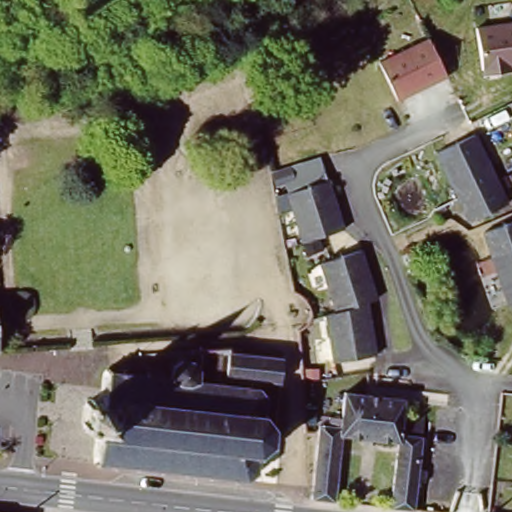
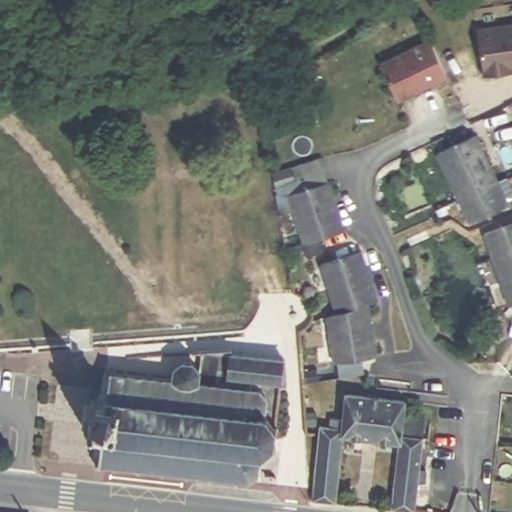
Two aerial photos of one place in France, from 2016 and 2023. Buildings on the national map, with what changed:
unchanged [(475,26),(512,21),(512,71),(481,75),(475,26)]
unchanged [(446,76),(397,99),(378,62),(428,38),(446,76)]
unchanged [(478,139),(512,207),(475,226),(440,158),(478,139)]
unchanged [(346,226),(305,239),(290,190),(330,178),(346,226)]
unchanged [(485,230),(512,221),(512,303),(510,303),(485,230)]
unchanged [(376,297),(366,301),(376,354),(335,362),(325,313),(335,311),(318,261),(360,247),(376,297)]
unchanged [(280,354),(277,373),(257,371),(256,381),(223,371),(226,350),(280,354)]
unchanged [(82,422),(83,400),(79,400),(79,395),(83,395),(83,391),(88,392),(89,396),(95,396),(95,391),(100,391),(103,367),(101,363),(105,361),(110,367),(114,367),(169,374),(170,362),(179,357),(185,357),(190,360),(197,368),(223,371),(256,381),(263,389),(261,402),(265,406),(262,411),(267,419),(274,419),(272,443),(267,442),(260,448),(260,456),(256,456),(254,471),(246,478),(232,477),(232,480),(228,479),(228,477),(207,474),(207,476),(201,476),(201,473),(182,471),(182,473),(178,472),(178,470),(160,468),(160,470),(155,469),(156,467),(136,464),(135,467),(130,466),(130,463),(111,461),(110,464),(106,463),(106,460),(96,459),(93,461),(91,459),(95,456),(98,431),(93,431),(93,425),(87,425),(87,428),(82,428),(82,425),(78,425),(77,422),(82,422)]
unchanged [(316,497),(322,430),(323,424),(328,425),(330,415),(342,417),(345,398),(345,391),(405,399),(404,403),(403,411),(426,414),(426,418),(416,510),(391,507),(398,440),(345,433),(337,500),(316,497)]

